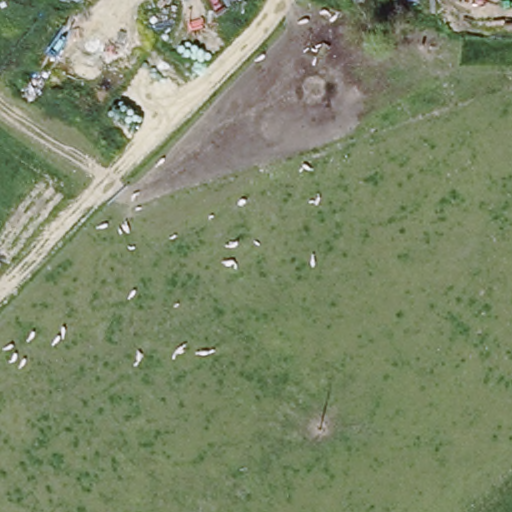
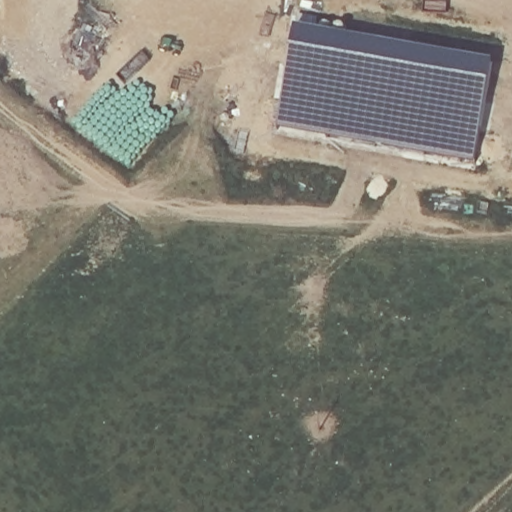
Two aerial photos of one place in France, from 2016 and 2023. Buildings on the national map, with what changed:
new [(300,31),(495,71),(477,167),(282,127),(300,31)]

